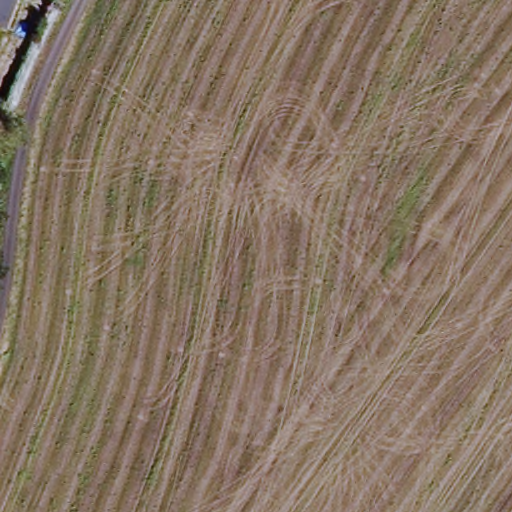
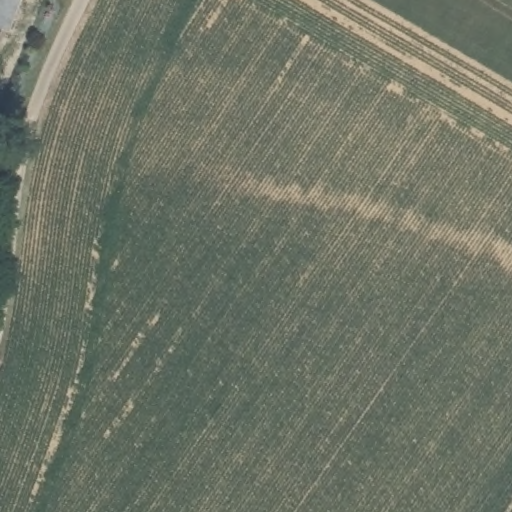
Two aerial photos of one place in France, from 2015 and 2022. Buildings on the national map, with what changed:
unchanged [(0,0),(5,0),(0,11),(0,0)]

